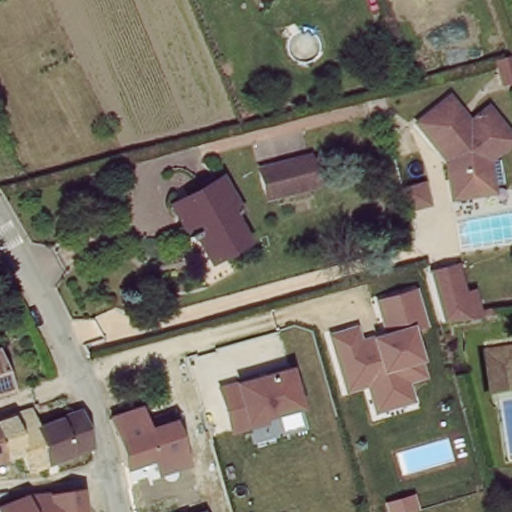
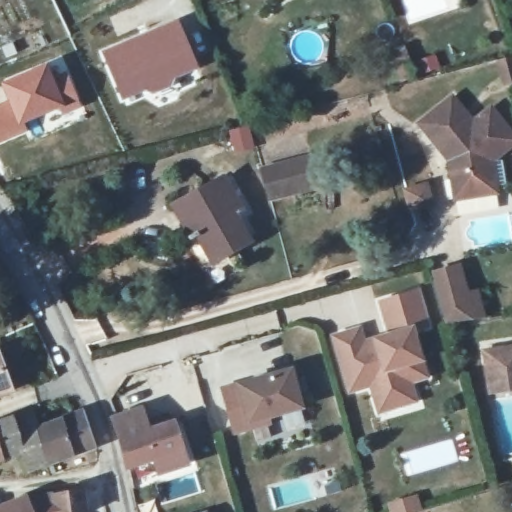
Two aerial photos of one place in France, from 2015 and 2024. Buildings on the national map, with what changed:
new [(177,18),(199,68),(175,81),(178,89),(160,95),(154,99),(148,94),(139,99),(138,96),(121,103),(98,50),(177,18)]
unchanged [(500,57),(512,53),(512,79),(505,81),(500,57)]
new [(6,99),(0,84),(0,82),(48,62),(55,77),(66,71),(82,106),(62,115),(58,109),(25,124),(28,132),(0,144),(0,101),(6,99)]
unchanged [(452,158),(453,157),(444,146),(423,119),(456,94),(476,120),(494,105),(512,128),(512,143),(494,158),(498,189),(473,193),(458,195),(455,177),(452,158)]
new [(249,125),(255,149),(235,155),(228,130),(249,125)]
unchanged [(318,154),(325,183),(276,196),(268,166),(318,154)]
unchanged [(220,184),(237,212),(230,217),(243,243),(210,262),(195,238),(183,246),(181,240),(188,236),(172,209),(220,184)]
unchanged [(467,263),(473,289),(485,286),(490,317),(448,329),(435,268),(467,263)]
unchanged [(418,289),(432,330),(418,334),(425,362),(430,378),(411,382),(420,406),(380,416),(370,390),(349,395),(332,334),(363,326),(366,337),(372,336),(388,332),(381,300),(418,289)]
unchanged [(491,381),(489,365),(488,358),(512,354),(512,392),(493,395),(491,381)]
unchanged [(9,390),(0,393),(0,363),(9,390)]
unchanged [(295,368),(305,411),(270,418),(272,424),(232,435),(219,388),(237,383),(295,368)]
unchanged [(47,461),(30,468),(22,451),(0,459),(0,418),(13,413),(24,409),(34,405),(41,423),(43,432),(44,435),(50,460),(47,461)]
unchanged [(86,406),(88,411),(93,425),(98,443),(50,460),(44,435),(43,432),(41,423),(86,406)]
unchanged [(190,463),(163,472),(158,460),(129,469),(123,441),(115,422),(145,411),(151,431),(176,423),(190,463)]
unchanged [(80,491),(84,512),(53,512),(50,498),(80,491)]
unchanged [(10,504),(28,497),(34,512),(1,512),(0,508),(0,507),(10,504)]

